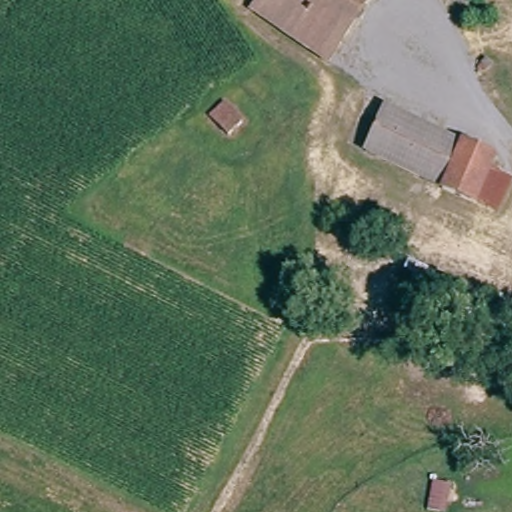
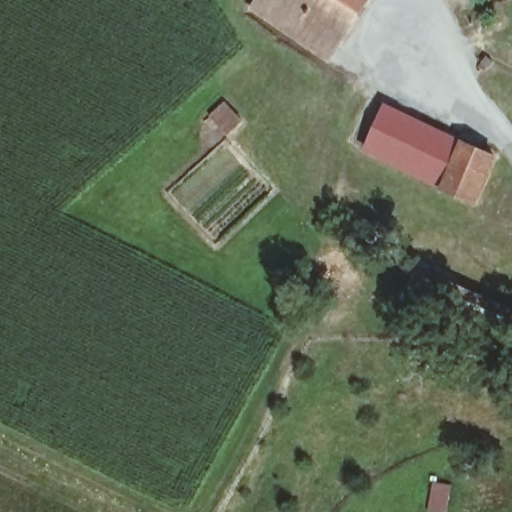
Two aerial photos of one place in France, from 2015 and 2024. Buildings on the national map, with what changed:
unchanged [(327,56),(277,20),(255,5),(258,0),(345,0),(358,9),(327,56)]
unchanged [(345,0),(364,0),(358,9),(345,0)]
unchanged [(498,155),(492,168),(512,177),(512,186),(498,213),(366,151),(387,103),(498,155)]
unchanged [(482,337),(405,301),(417,264),(496,302),(482,337)]

